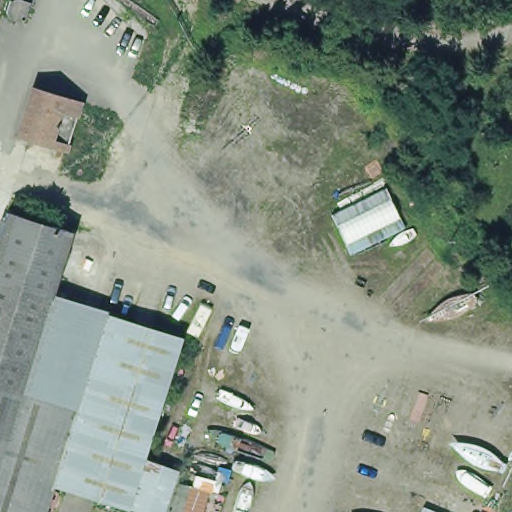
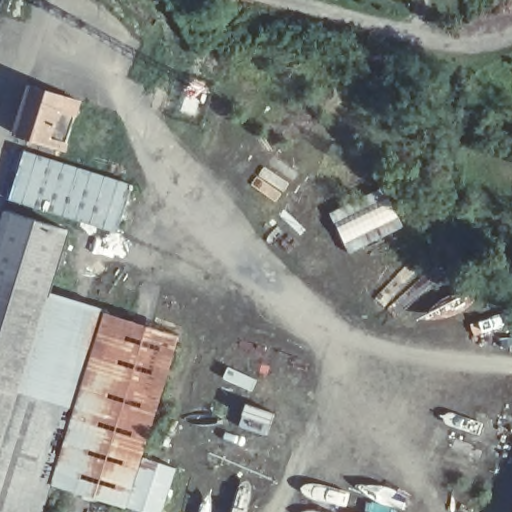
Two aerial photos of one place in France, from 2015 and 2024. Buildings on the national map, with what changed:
unchanged [(6,12),(9,2),(11,0),(18,0),(31,3),(29,9),(25,11),(22,21),(8,16),(6,12)]
unchanged [(68,152),(51,146),(21,137),(37,87),(68,96),(84,101),(68,152)]
new [(24,149),(131,183),(115,232),(42,210),(8,199),(24,149)]
new [(349,253),(331,212),(384,187),(403,227),(349,253)]
unchanged [(1,207),(71,228),(50,291),(138,319),(178,332),(123,512),(110,507),(45,482),(32,512),(0,512),(0,212),(1,207)]
unchanged [(512,496),(512,512),(504,512),(512,496)]

